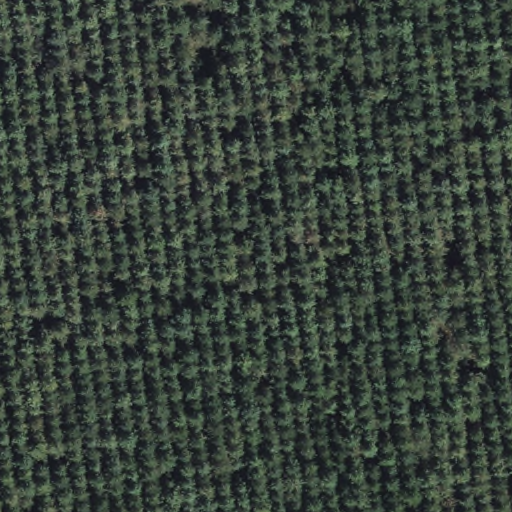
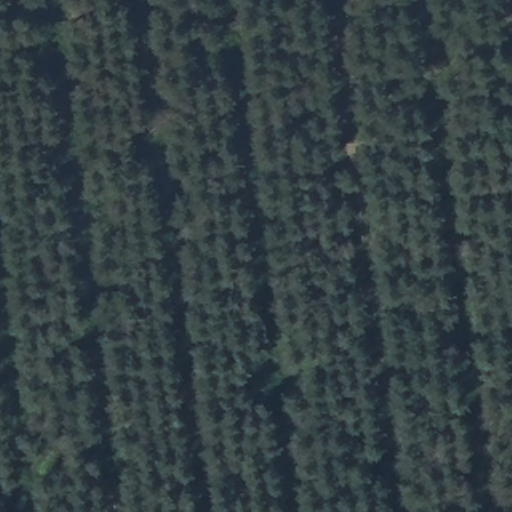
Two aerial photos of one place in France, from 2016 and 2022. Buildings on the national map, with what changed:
[]

